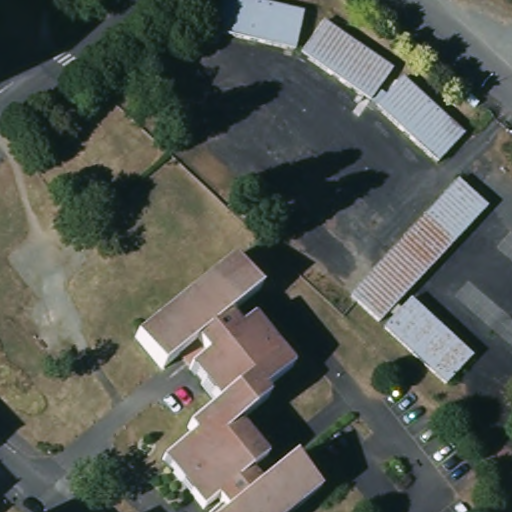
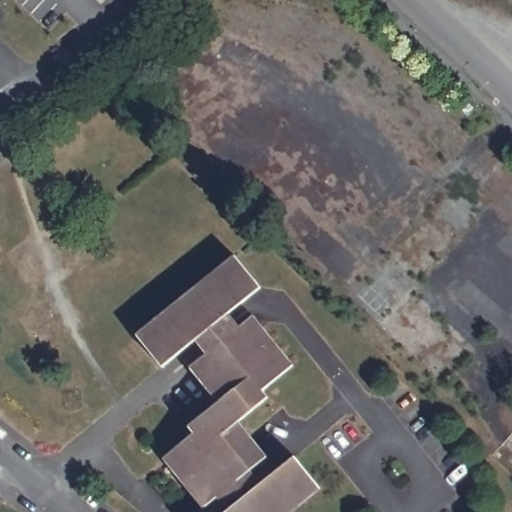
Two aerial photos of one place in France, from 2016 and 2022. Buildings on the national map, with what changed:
demolished [(295,44),(214,27),(221,0),(273,0),(304,7),(295,44)]
demolished [(371,96),(303,48),(325,17),(393,65),(371,96)]
demolished [(403,73),(464,130),(439,158),(378,101),(403,73)]
demolished [(487,202),(425,269),(396,243),(458,176),(487,202)]
unchanged [(264,399),(234,424),(274,472),(291,459),(316,491),(290,512),(223,512),(212,499),(198,509),(159,461),(191,436),(186,429),(215,405),(187,370),(203,357),(191,342),(158,368),(132,336),(229,257),(253,287),(256,290),(225,314),(237,329),(250,318),(258,329),(289,367),(259,392),(264,399)]
demolished [(446,381),(385,324),(411,296),(472,352),(446,381)]

